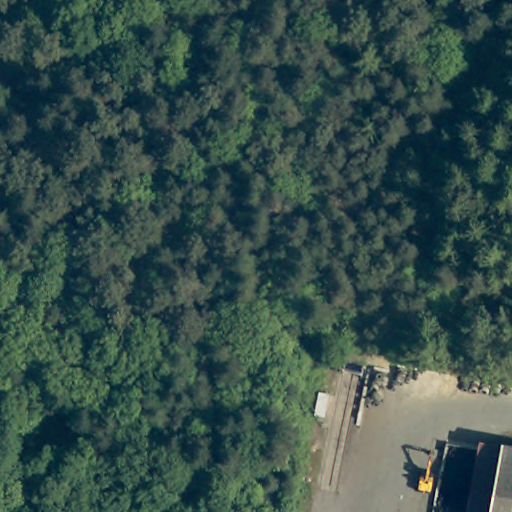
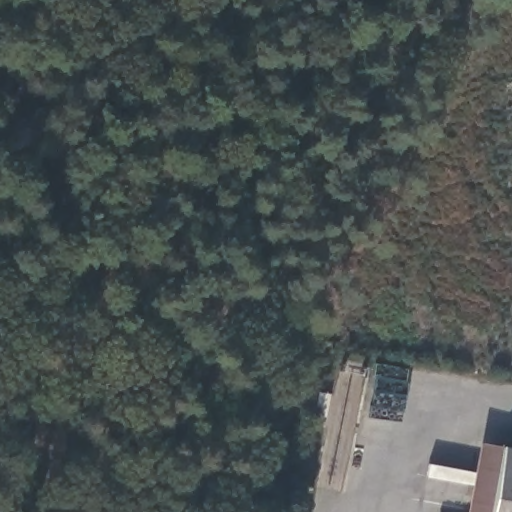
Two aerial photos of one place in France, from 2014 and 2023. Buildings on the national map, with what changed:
unchanged [(330,399),(339,401),(336,424),(325,421),(330,399)]
unchanged [(512,449),(512,512),(489,512),(501,447),(512,449)]

